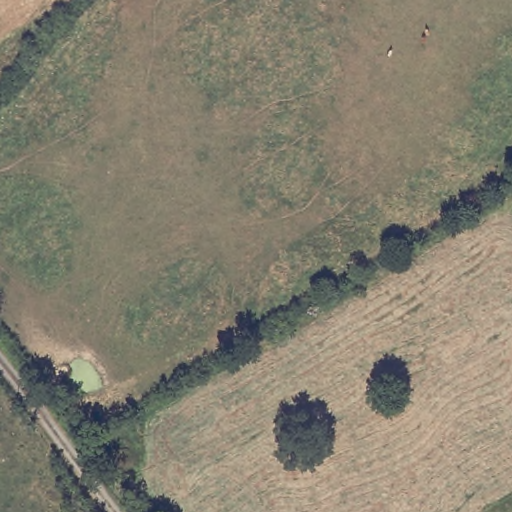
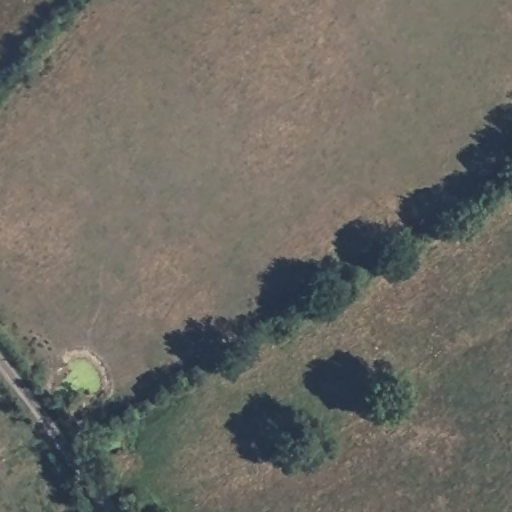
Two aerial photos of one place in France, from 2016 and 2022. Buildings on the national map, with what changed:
[]

